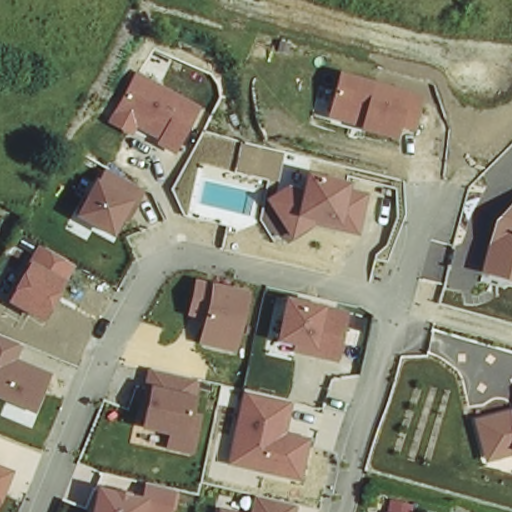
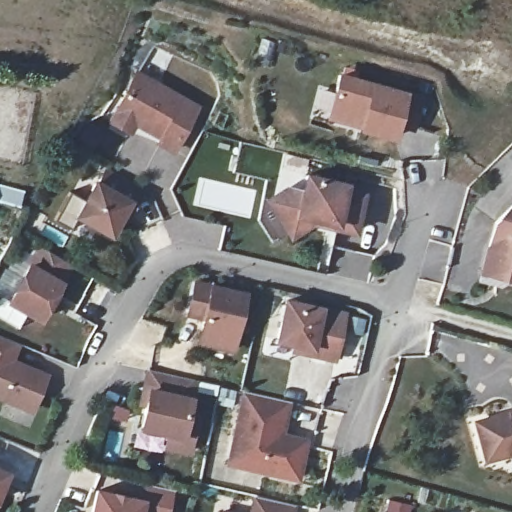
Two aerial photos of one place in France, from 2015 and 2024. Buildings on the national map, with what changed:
unchanged [(157,146),(160,140),(138,127),(132,135),(106,122),(133,68),(203,105),(176,154),(157,146)]
unchanged [(397,126),(393,138),(358,130),(358,126),(328,120),(340,72),(411,92),(425,96),(416,131),(397,126)]
unchanged [(76,217),(96,179),(103,183),(108,168),(148,190),(130,225),(121,220),(111,238),(76,217)]
unchanged [(285,184),(303,189),(305,174),(350,182),(348,187),(367,192),(359,235),(316,225),(290,240),(263,199),(285,184)]
unchanged [(493,220),(512,203),(512,283),(480,273),(493,220)]
unchanged [(7,303),(32,260),(40,247),(73,265),(65,281),(41,322),(7,303)]
unchanged [(197,344),(201,323),(185,319),(193,280),(217,285),(249,292),(235,353),(197,344)]
unchanged [(293,353),(295,346),(276,343),(287,297),(327,307),(348,311),(337,363),(293,353)]
unchanged [(0,399),(0,335),(21,342),(15,360),(51,373),(35,411),(0,399)]
unchanged [(164,450),(166,433),(141,429),(150,385),(152,370),(197,381),(195,397),(192,411),(201,414),(192,456),(164,450)]
unchanged [(228,466),(241,391),(292,401),(285,431),(308,436),(299,483),(228,466)]
unchanged [(512,411),(512,456),(508,455),(485,463),(473,420),(512,411)]
unchanged [(10,471),(0,498),(0,467),(10,471)]
unchanged [(95,488),(140,497),(142,482),(175,489),(170,512),(91,512),(95,488)]
unchanged [(255,497),(295,505),(294,512),(251,512),(255,497)]
unchanged [(220,510),(234,512),(219,512),(220,510)]

